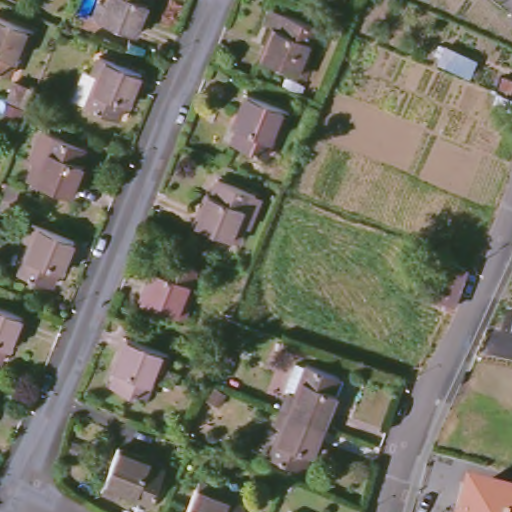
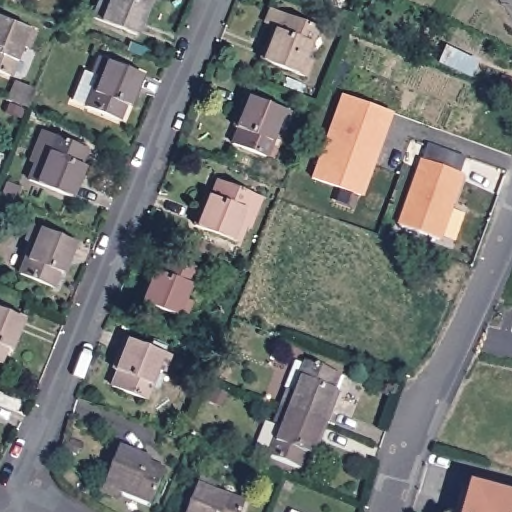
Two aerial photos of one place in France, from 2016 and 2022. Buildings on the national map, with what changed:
unchanged [(98,1),(105,4),(106,0),(153,0),(151,5),(145,3),(133,34),(91,18),(98,1)]
unchanged [(260,64),(272,30),(263,27),(270,11),(315,29),(303,61),(310,64),(303,80),(260,64)]
unchanged [(0,71),(0,16),(34,30),(27,46),(20,44),(9,74),(0,71)]
new [(470,76),(436,64),(445,45),(477,60),(470,76)]
unchanged [(85,110),(70,105),(83,75),(90,78),(97,60),(140,78),(128,110),(123,109),(117,124),(85,110)]
unchanged [(27,105),(13,99),(7,98),(13,81),(20,84),(33,89),(27,105)]
new [(309,177),(340,94),(391,111),(361,195),(309,177)]
unchanged [(231,148),(237,133),(232,131),(245,99),(289,116),(282,133),(275,130),(263,160),(231,148)]
unchanged [(78,168),(83,169),(70,200),(27,183),(34,167),(29,165),(41,134),(65,144),(66,141),(82,148),(81,150),(85,152),(78,168)]
new [(442,240),(397,224),(420,160),(465,177),(442,240)]
unchanged [(260,199),(248,230),(244,228),(237,245),(193,229),(206,197),(212,199),(218,184),(250,195),(260,199)]
unchanged [(5,188),(20,194),(15,205),(8,220),(0,217),(0,201),(0,199),(5,188)]
unchanged [(18,278),(30,247),(25,244),(31,228),(75,244),(61,278),(56,275),(50,290),(18,278)]
unchanged [(467,265),(455,306),(416,300),(435,254),(467,265)]
unchanged [(140,304),(152,272),(158,274),(164,259),(195,272),(183,302),(190,304),(182,322),(140,304)]
unchanged [(22,321),(10,354),(5,352),(0,365),(0,311),(22,321)]
unchanged [(112,391),(118,375),(113,374),(126,341),(168,358),(161,376),(155,373),(143,403),(112,391)]
unchanged [(280,411),(288,393),(285,392),(295,366),(302,369),(303,367),(344,382),(325,429),(280,411)]
unchanged [(325,429),(313,459),(308,457),(301,473),(270,461),(281,430),(275,428),(280,411),(325,429)]
unchanged [(120,496),(117,502),(101,495),(118,453),(151,468),(150,472),(163,477),(150,509),(120,496)]
unchanged [(200,483),(217,490),(215,498),(245,510),(244,512),(187,512),(200,483)]
unchanged [(471,494),(512,506),(512,512),(466,512),(471,494)]

